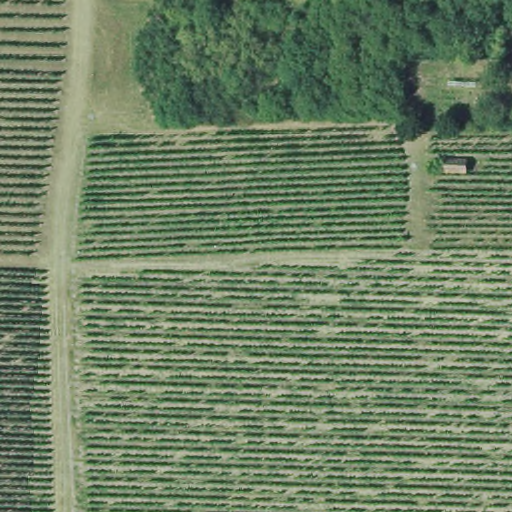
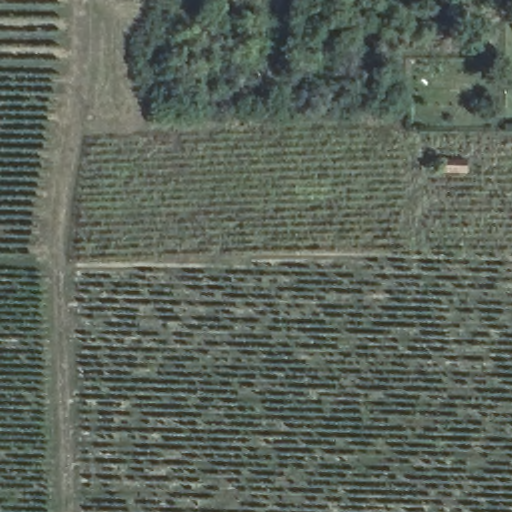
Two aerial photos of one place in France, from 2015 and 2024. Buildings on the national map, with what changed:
unchanged [(437,166),(461,166),(461,176),(437,176),(437,166)]

